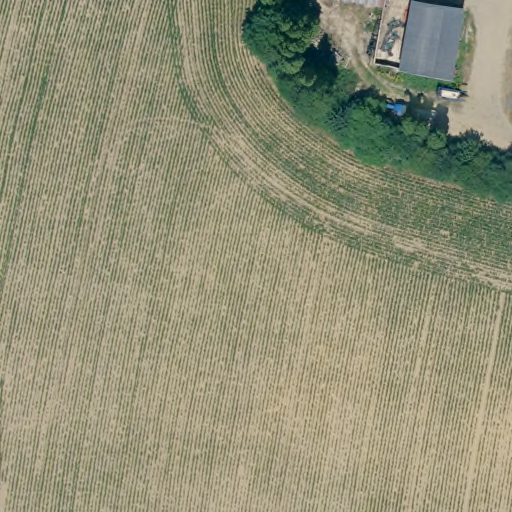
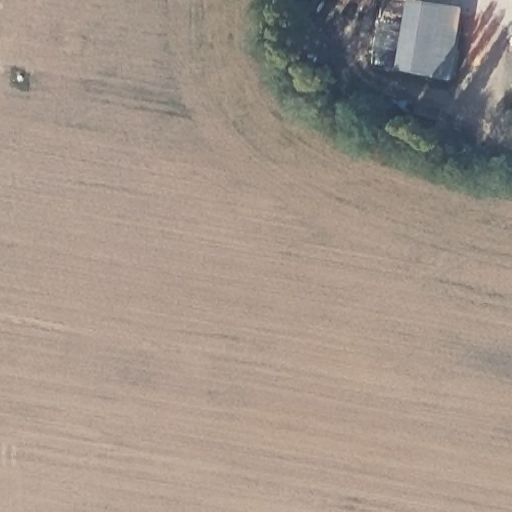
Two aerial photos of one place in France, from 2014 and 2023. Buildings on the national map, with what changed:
unchanged [(347,0),(387,0),(386,6),(347,0)]
unchanged [(462,8),(451,79),(400,68),(413,1),(462,8)]

